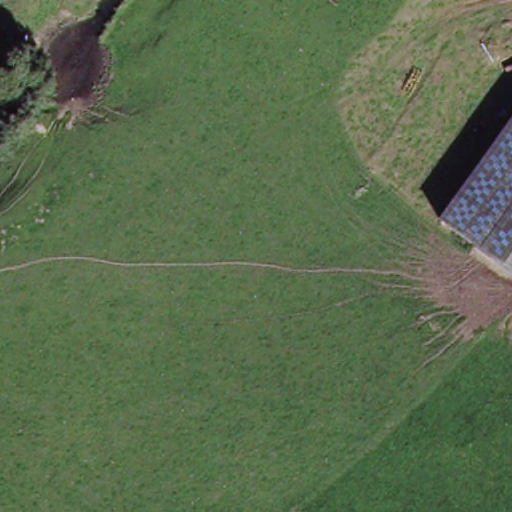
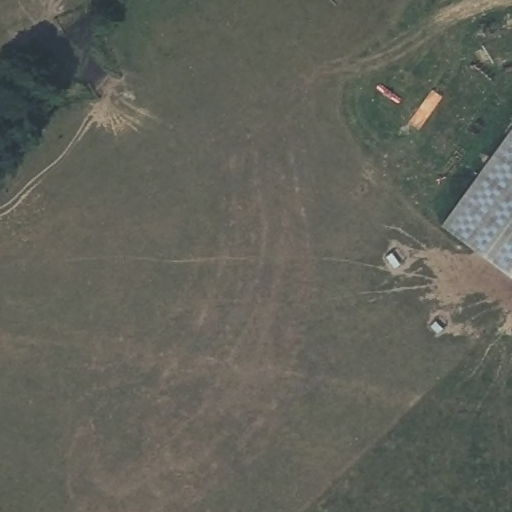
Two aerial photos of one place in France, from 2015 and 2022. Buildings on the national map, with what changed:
unchanged [(459,232),(486,191),(512,152),(512,267),(459,232)]

